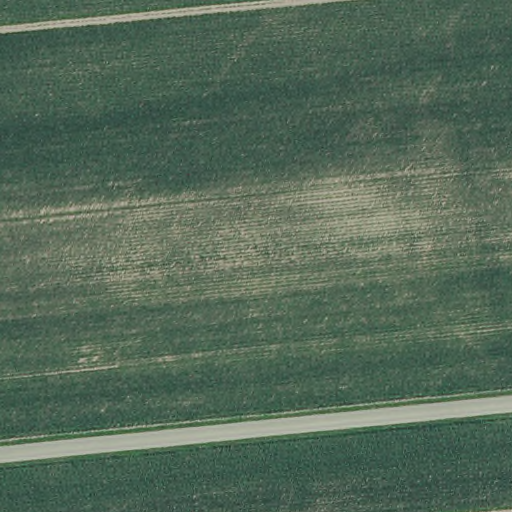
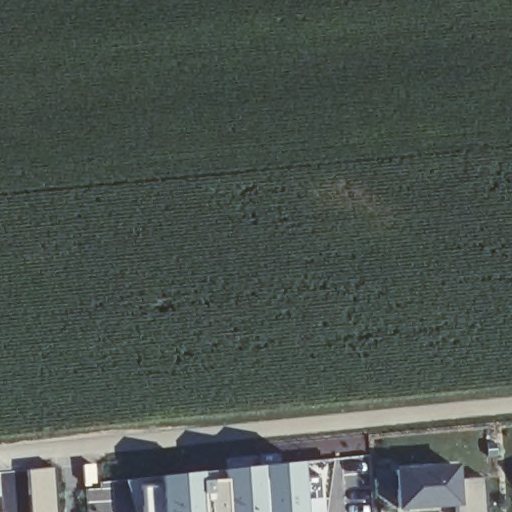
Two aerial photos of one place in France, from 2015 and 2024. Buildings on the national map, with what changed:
new [(258,467),(299,462),(302,512),(263,512),(258,467)]
new [(455,508),(397,512),(395,465),(454,463),(456,481),(481,479),(483,512),(455,512),(455,508)]
new [(52,466),(55,512),(29,512),(25,469),(52,466)]
new [(195,482),(201,482),(200,473),(258,467),(263,512),(197,512),(195,482)]
new [(138,487),(158,484),(157,478),(200,473),(201,482),(195,482),(197,512),(140,512),(138,487)]

